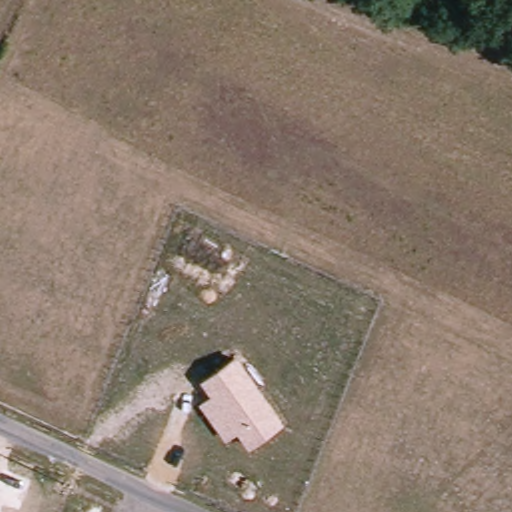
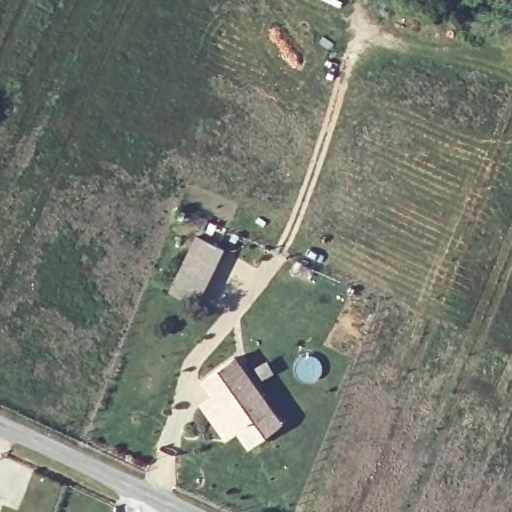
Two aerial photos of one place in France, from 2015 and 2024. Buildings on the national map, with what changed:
new [(196,235),(225,248),(198,304),(170,290),(196,235)]
unchanged [(285,422),(250,448),(239,432),(226,441),(201,405),(212,397),(202,382),(238,356),(285,422)]

